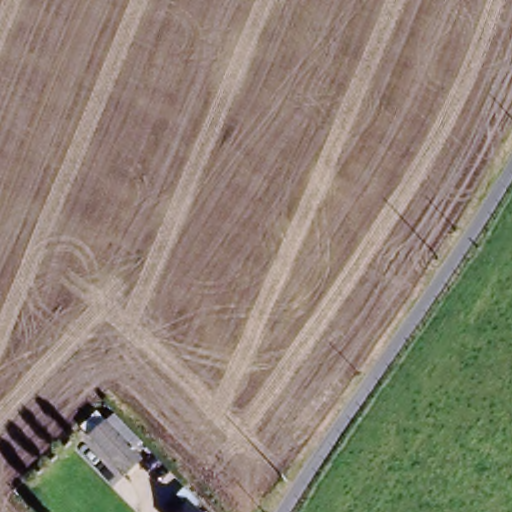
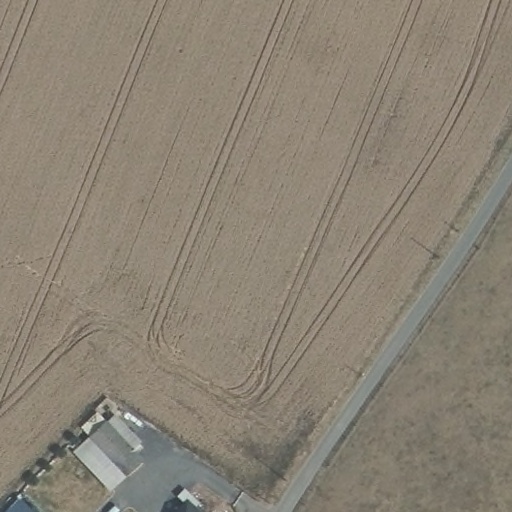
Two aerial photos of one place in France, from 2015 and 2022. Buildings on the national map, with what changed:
unchanged [(91,437),(107,423),(143,461),(127,475),(91,437)]
unchanged [(196,512),(171,512),(180,502),(175,496),(180,491),(194,504),(190,507),(196,512)]

